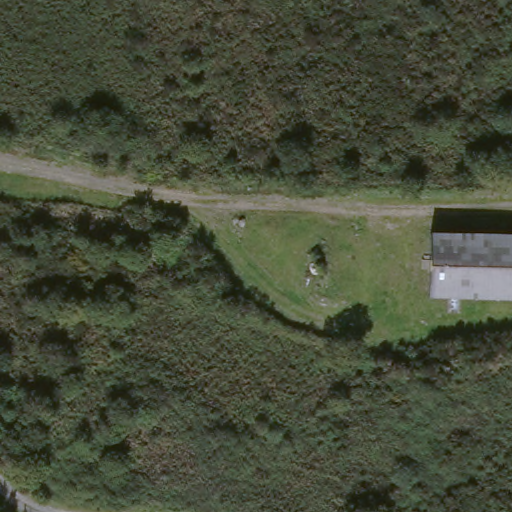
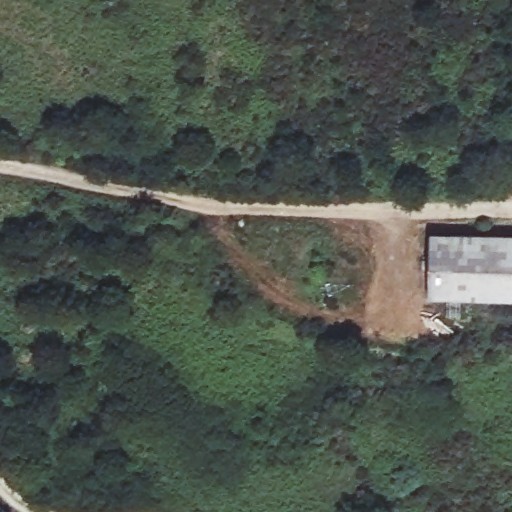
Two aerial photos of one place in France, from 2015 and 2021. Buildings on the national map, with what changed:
unchanged [(424,239),(512,240),(512,308),(420,307),(424,239)]

